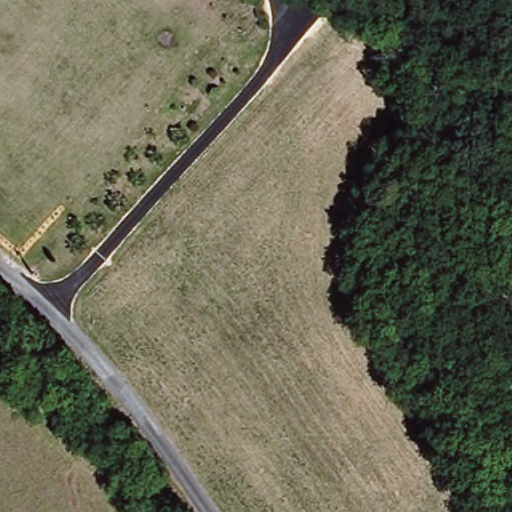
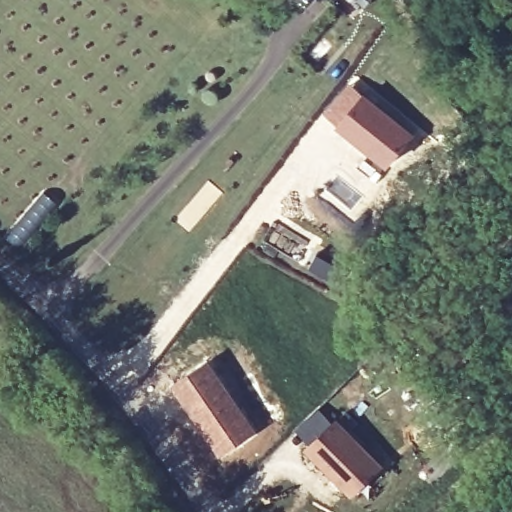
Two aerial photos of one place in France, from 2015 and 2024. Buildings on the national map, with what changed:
new [(361,10),(350,0),(369,0),(361,10)]
new [(383,172),(334,127),(321,115),(350,82),(365,92),(416,134),(383,172)]
new [(317,254),(350,271),(341,290),(307,271),(317,254)]
new [(208,359),(258,433),(217,461),(167,389),(208,359)]
new [(330,423),(377,472),(350,498),(302,450),(330,423)]

